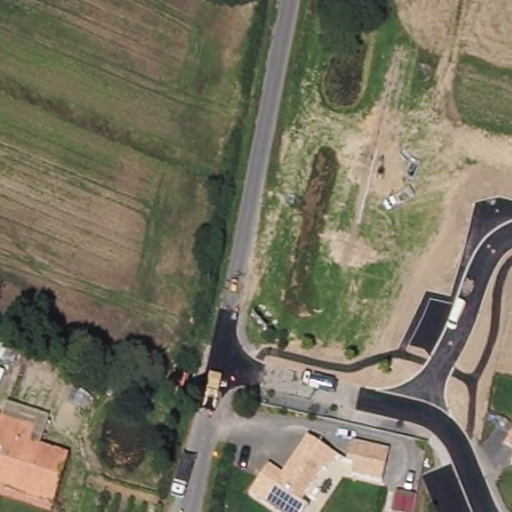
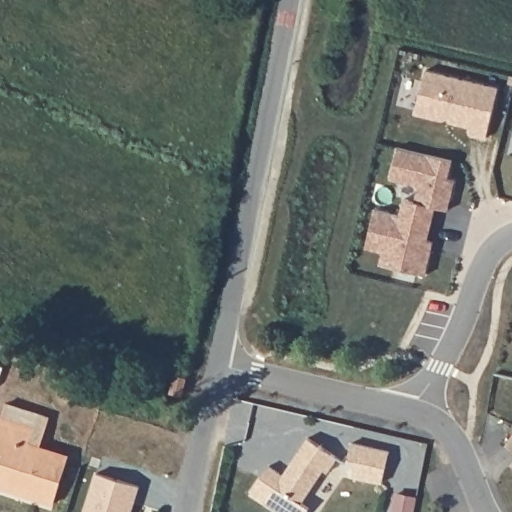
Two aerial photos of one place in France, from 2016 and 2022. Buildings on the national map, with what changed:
new [(425,67),(498,85),(485,135),(469,131),(470,124),(414,111),(425,67)]
new [(374,208),(399,214),(403,197),(414,199),(418,184),(389,177),(397,146),(397,145),(451,159),(447,177),(454,179),(447,209),(435,206),(427,238),(433,240),(424,274),(376,262),(379,250),(365,246),(374,208)]
unchanged [(176,375),(186,379),(180,396),(170,393),(176,375)]
unchanged [(40,428),(35,443),(74,455),(58,504),(0,485),(0,470),(1,469),(0,469),(0,430),(5,416),(40,428)]
unchanged [(512,433),(512,451),(504,445),(512,433)]
unchanged [(339,456),(328,472),(325,469),(303,501),(312,507),(309,512),(279,512),(253,493),(272,466),(283,474),(309,434),(339,456)]
unchanged [(390,449),(382,481),(351,474),(354,464),(348,462),(353,440),(390,449)]
unchanged [(512,460),(512,467),(509,464),(512,461),(512,460)]
new [(141,484),(132,512),(83,512),(97,471),(141,484)]

